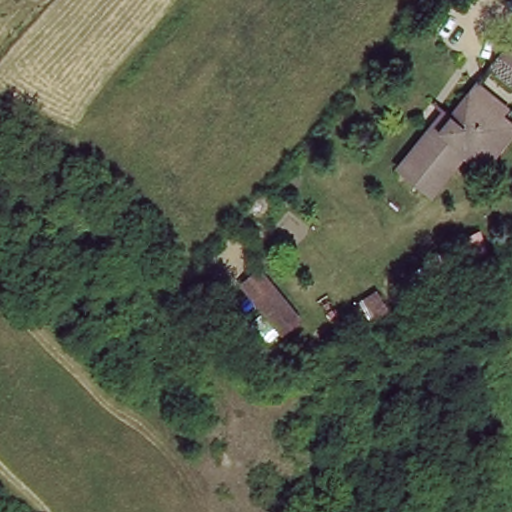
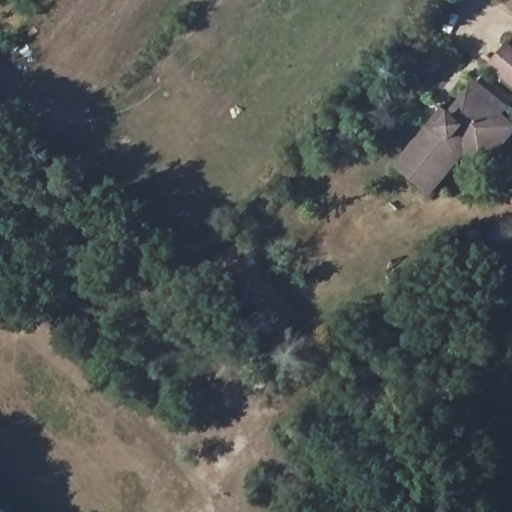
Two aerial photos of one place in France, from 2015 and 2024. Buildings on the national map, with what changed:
unchanged [(509,48),(512,50),(512,87),(492,71),(509,48)]
unchanged [(436,122),(444,130),(474,101),(509,134),(480,164),(467,151),(427,191),(396,162),(436,122)]
unchanged [(288,336),(244,294),(262,275),(305,319),(288,336)]

